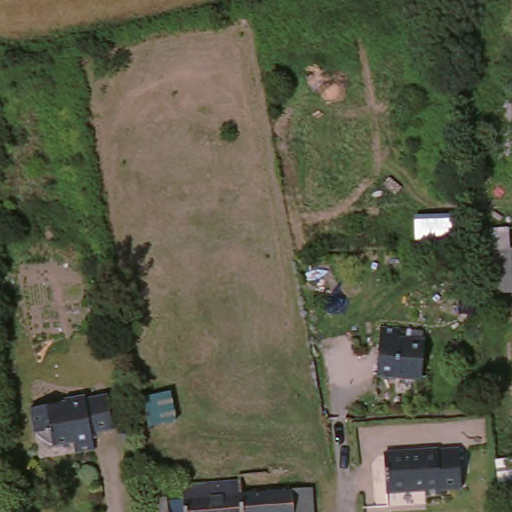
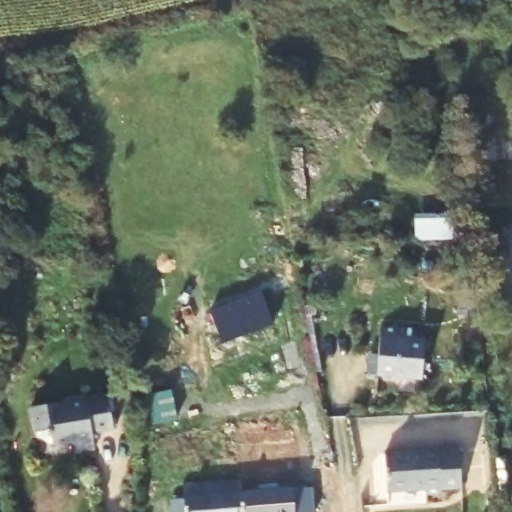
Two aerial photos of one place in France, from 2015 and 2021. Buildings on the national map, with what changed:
new [(260,291),(273,324),(221,343),(209,311),(260,291)]
unchanged [(379,375),(383,328),(404,330),(428,332),(426,343),(422,381),(379,375)]
unchanged [(121,432),(99,435),(102,451),(83,454),(82,443),(60,447),(58,436),(52,432),(43,434),(39,410),(78,402),(76,398),(94,395),(94,399),(116,396),(121,432)]
unchanged [(459,448),(462,489),(441,491),(441,499),(425,500),(424,493),(392,496),(388,455),(459,448)]
unchanged [(314,491),(315,512),(241,512),(241,483),(241,477),(296,474),(297,492),(314,491)]
unchanged [(175,512),(174,502),(186,501),(185,489),(214,486),(241,483),(241,512),(175,512)]
unchanged [(155,512),(154,500),(170,499),(170,502),(171,512),(155,512)]

